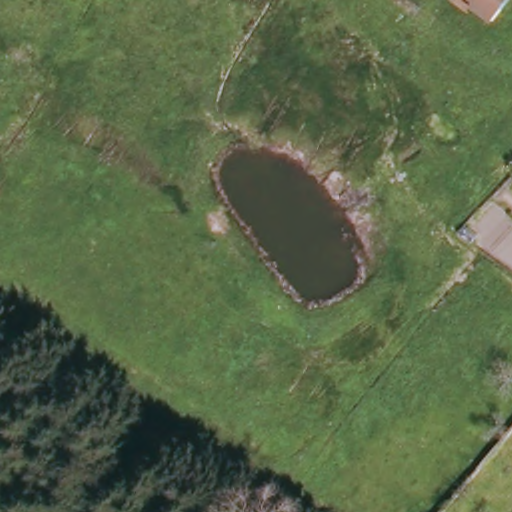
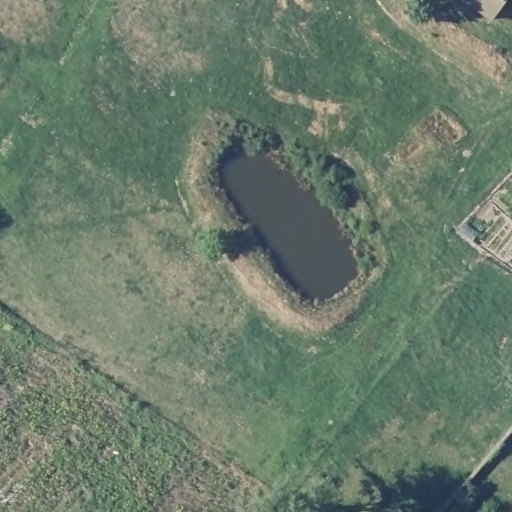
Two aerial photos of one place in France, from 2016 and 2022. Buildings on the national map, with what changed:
unchanged [(476,6),(479,1),(477,0),(510,0),(495,20),(476,6)]

